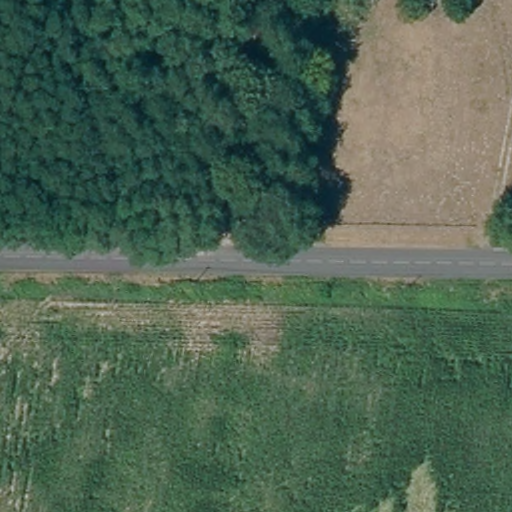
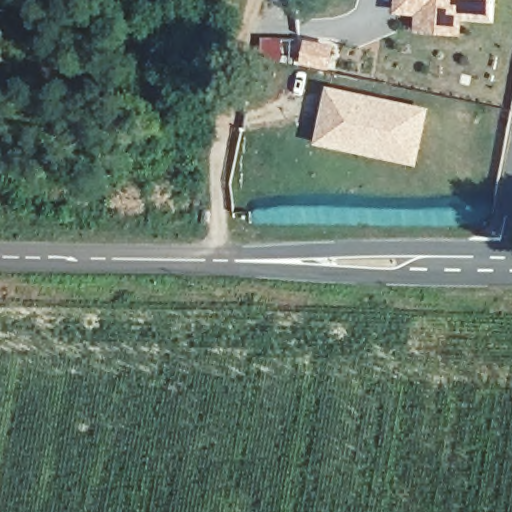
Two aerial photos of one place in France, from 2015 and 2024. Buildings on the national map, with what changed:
new [(397,13),(398,0),(491,0),(489,20),(460,18),(459,36),(417,33),(419,15),(397,13)]
new [(310,41),(334,46),(331,63),(306,58),(310,41)]
new [(328,93),(378,104),(378,107),(385,109),(386,106),(425,114),(417,151),(351,137),(348,152),(317,145),(328,93)]
new [(351,137),(417,151),(414,166),(348,152),(351,137)]

